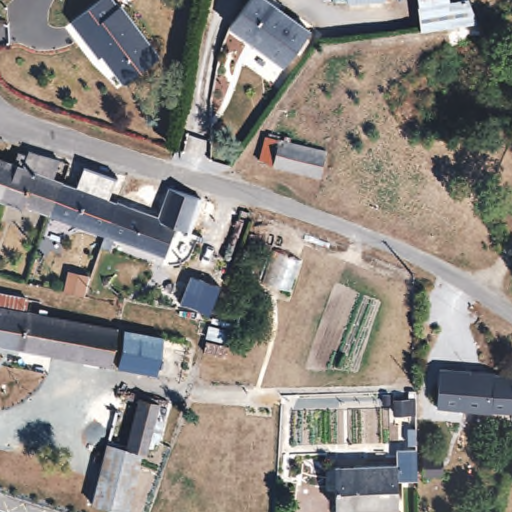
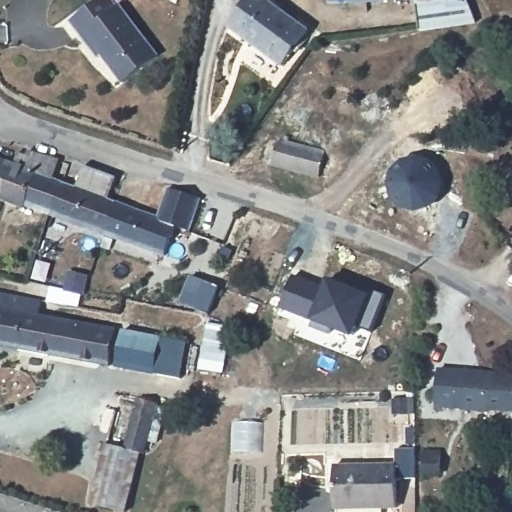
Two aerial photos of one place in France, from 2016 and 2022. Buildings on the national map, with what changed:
unchanged [(68,23),(98,0),(108,0),(115,9),(117,7),(155,58),(120,84),(99,56),(95,59),(75,33),(68,23)]
unchanged [(277,70),(224,29),(247,0),(257,0),(303,37),(277,70)]
unchanged [(414,0),(447,0),(451,0),(467,0),(473,27),(418,34),(414,0)]
unchanged [(313,154),(307,180),(259,169),(265,143),(313,154)]
unchanged [(22,158),(24,154),(54,164),(48,182),(58,185),(47,218),(22,209),(21,212),(0,204),(0,197),(10,169),(15,155),(22,158)]
unchanged [(0,197),(0,165),(10,169),(0,197)]
unchanged [(72,190),(79,170),(112,182),(104,202),(114,205),(102,238),(47,218),(58,185),(72,190)]
unchanged [(156,220),(166,190),(199,203),(199,204),(187,238),(170,232),(161,258),(134,249),(145,217),(156,220)]
unchanged [(145,217),(134,249),(102,238),(114,205),(145,217)]
new [(314,320),(330,279),(367,294),(371,289),(386,295),(371,333),(358,328),(353,339),(331,329),(329,335),(311,329),(314,320)]
unchanged [(129,369),(0,344),(0,294),(42,302),(40,314),(135,333),(129,369)]
unchanged [(181,341),(174,377),(134,369),(141,334),(181,341)]
unchanged [(448,364),(447,374),(465,377),(460,412),(427,408),(432,373),(433,362),(448,364)]
unchanged [(491,413),(487,416),(460,412),(465,377),(489,381),(492,384),(512,386),(512,415),(491,413)]
unchanged [(154,407),(140,457),(131,454),(122,452),(136,402),(154,407)]
unchanged [(121,512),(101,512),(88,509),(86,508),(102,449),(103,450),(135,459),(121,512)]
unchanged [(397,466),(397,508),(335,507),(335,464),(397,466)]

